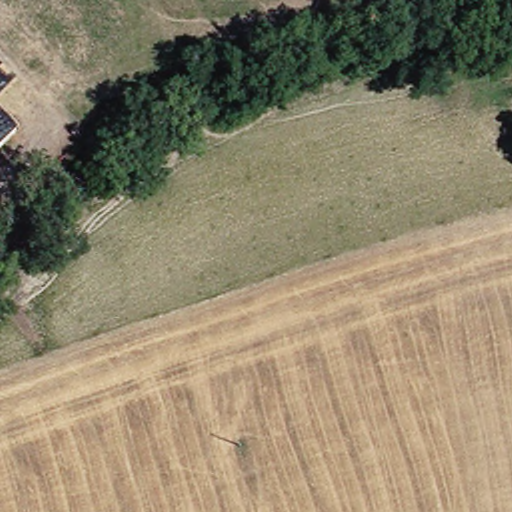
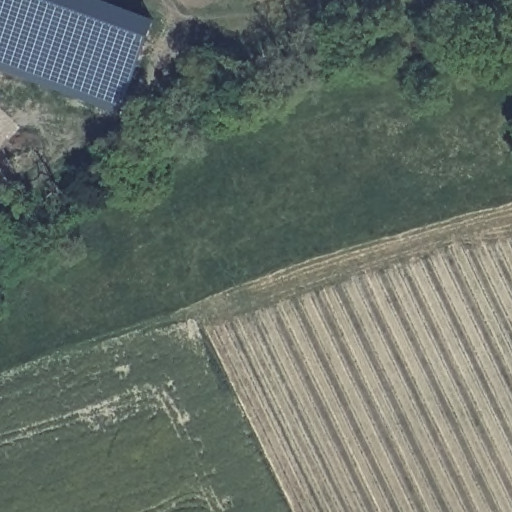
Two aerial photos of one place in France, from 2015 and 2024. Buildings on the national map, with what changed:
new [(154,23),(122,106),(0,59),(0,0),(94,0),(154,23)]

